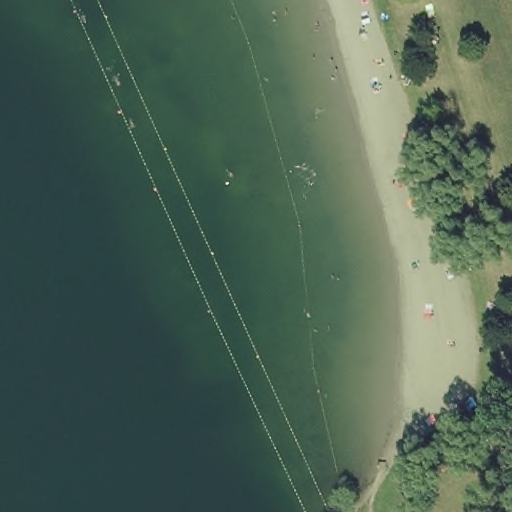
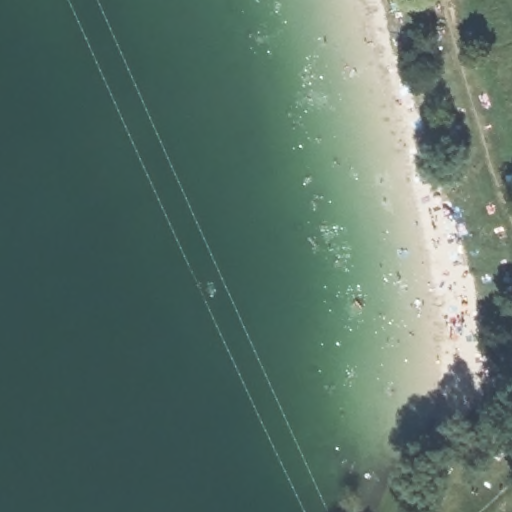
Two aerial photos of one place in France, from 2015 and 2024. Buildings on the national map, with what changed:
[]

